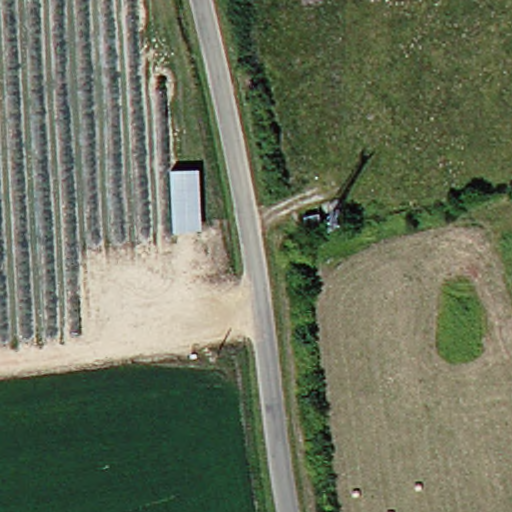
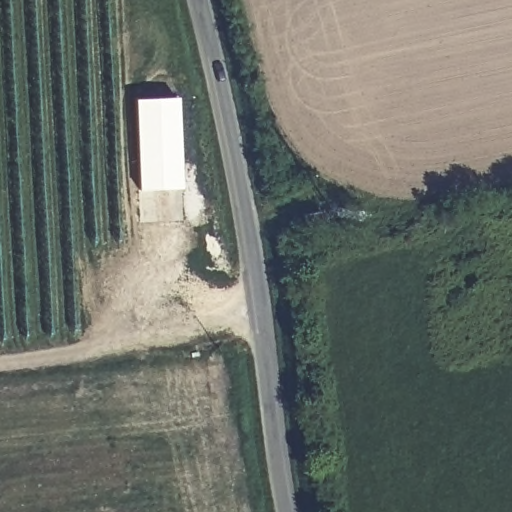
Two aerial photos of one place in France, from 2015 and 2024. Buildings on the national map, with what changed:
new [(139,96),(182,95),(181,222),(140,221),(139,96)]
demolished [(169,165),(200,164),(204,227),(173,231),(169,165)]

